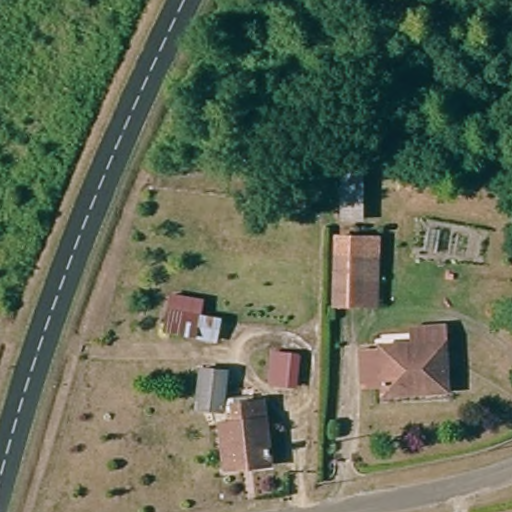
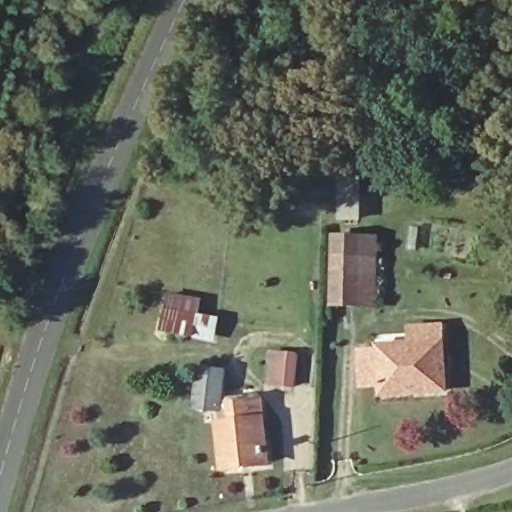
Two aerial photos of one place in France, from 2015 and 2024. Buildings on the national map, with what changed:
unchanged [(341,174),(361,174),(360,219),(340,219),(341,174)]
unchanged [(359,311),(335,310),(335,263),(335,244),(379,244),(378,264),(377,312),(359,311)]
unchanged [(209,342),(157,334),(162,308),(214,315),(209,342)]
unchanged [(376,397),(376,390),(355,391),(355,355),(375,356),(375,350),(409,349),(408,332),(441,331),(441,348),(442,394),(376,397)]
unchanged [(196,412),(196,401),(192,372),(216,371),(219,399),(220,411),(196,412)]
unchanged [(257,406),(262,467),(220,471),(217,428),(230,428),(229,408),(257,406)]

